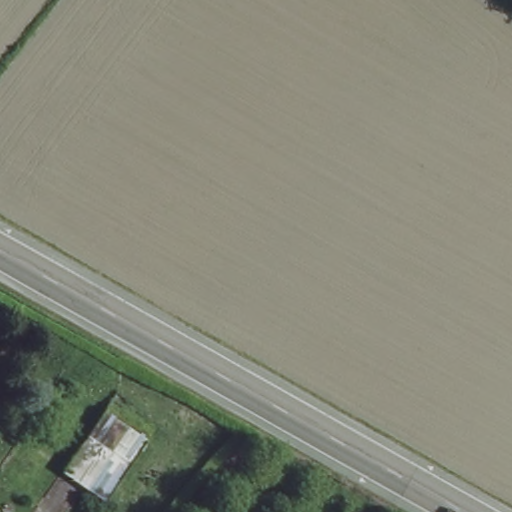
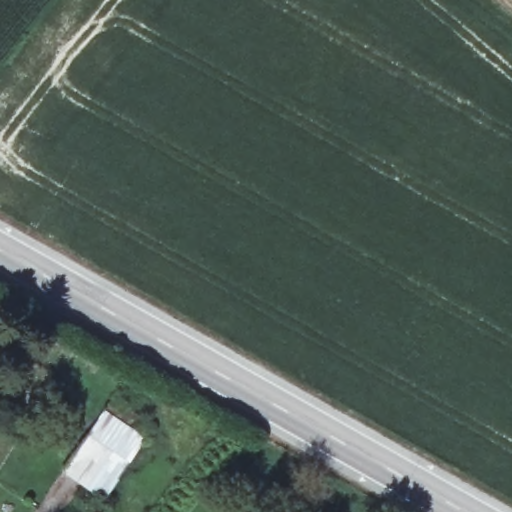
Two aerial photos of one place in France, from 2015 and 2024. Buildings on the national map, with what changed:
unchanged [(140,440),(100,496),(65,472),(103,417),(140,440)]

